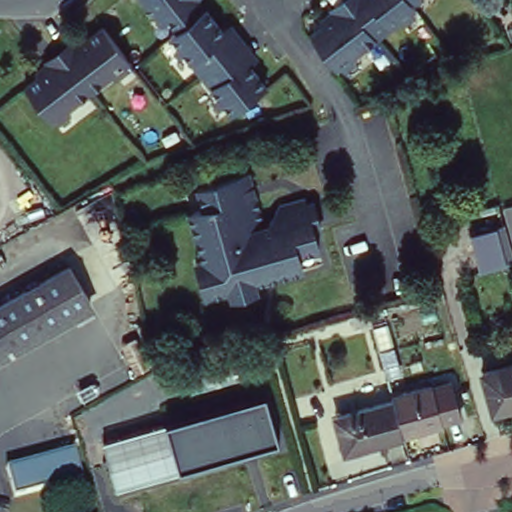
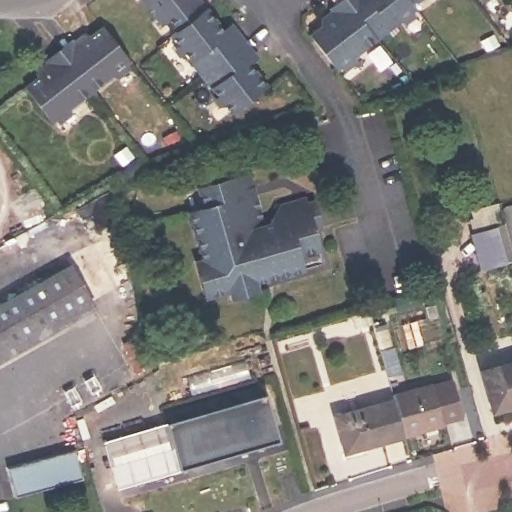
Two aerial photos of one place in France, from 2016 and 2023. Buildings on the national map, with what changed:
unchanged [(244,65),(265,91),(229,117),(169,39),(176,33),(164,17),(156,22),(139,0),(198,0),(195,2),(224,39),(233,31),(253,58),(244,65)]
unchanged [(415,0),(420,8),(342,69),(326,47),(315,32),(338,14),(334,7),(343,0),(415,0)]
unchanged [(51,65),(79,43),(84,50),(109,30),(135,65),(56,126),(29,91),(55,71),(51,65)]
unchanged [(298,257),(302,271),(257,283),(258,292),(235,298),(233,290),(207,297),(199,262),(203,261),(190,214),(202,210),(197,190),(249,177),(263,231),(270,229),(270,225),(279,206),(303,200),(305,205),(312,203),(319,230),(311,231),(317,251),(298,257)]
unchanged [(508,210),(512,209),(512,224),(508,210)]
unchanged [(512,240),(512,263),(485,270),(474,236),(508,226),(512,240)]
unchanged [(87,305),(0,355),(0,306),(66,267),(87,305)]
unchanged [(385,393),(369,327),(389,322),(405,388),(385,393)]
unchanged [(490,410),(479,372),(512,363),(512,404),(490,410)]
unchanged [(385,393),(426,382),(430,395),(452,390),(460,413),(437,419),(438,423),(397,435),(388,403),(385,393)]
unchanged [(277,443),(117,490),(104,445),(265,395),(277,443)]
unchanged [(342,455),(332,420),(388,403),(397,435),(398,438),(342,455)]
unchanged [(5,467),(71,448),(80,477),(14,496),(5,467)]

